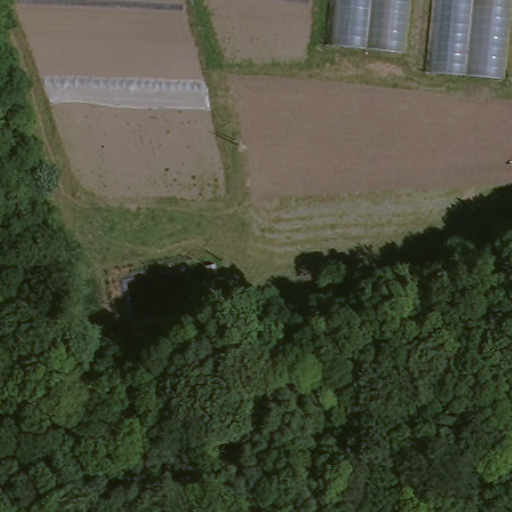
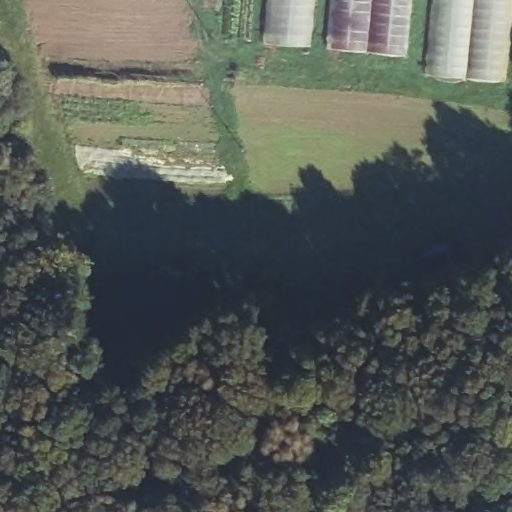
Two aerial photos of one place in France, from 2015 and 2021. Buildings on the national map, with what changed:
new [(271,0),(307,0),(302,46),(267,40),(271,0)]
unchanged [(408,54),(327,48),(331,0),(412,0),(408,54)]
unchanged [(506,81),(428,74),(434,0),(512,0),(512,17),(506,81)]

